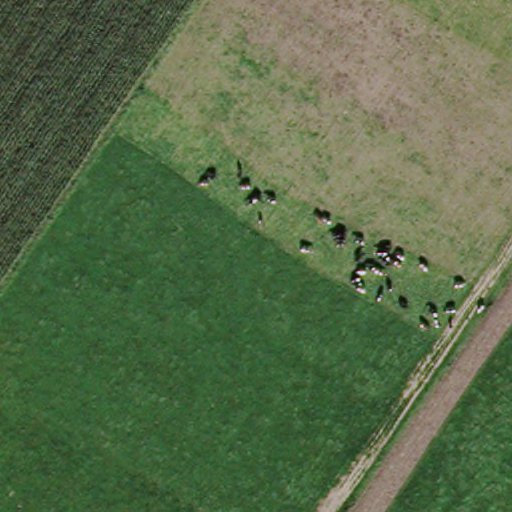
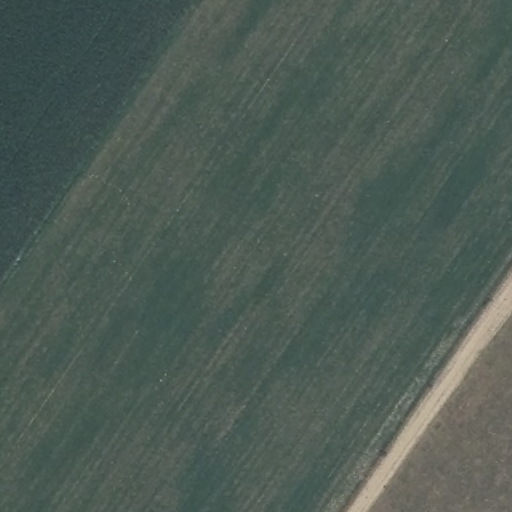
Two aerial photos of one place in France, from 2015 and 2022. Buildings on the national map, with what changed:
[]

